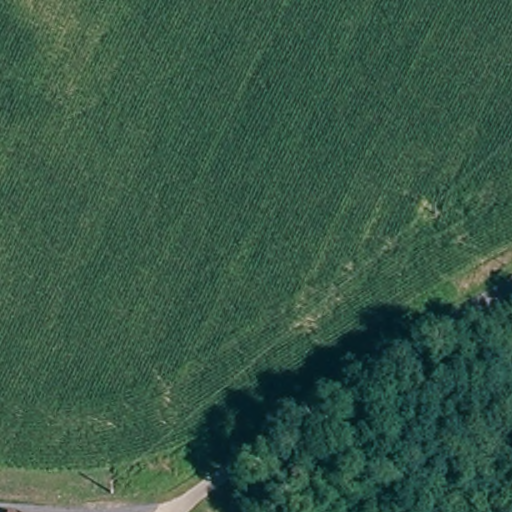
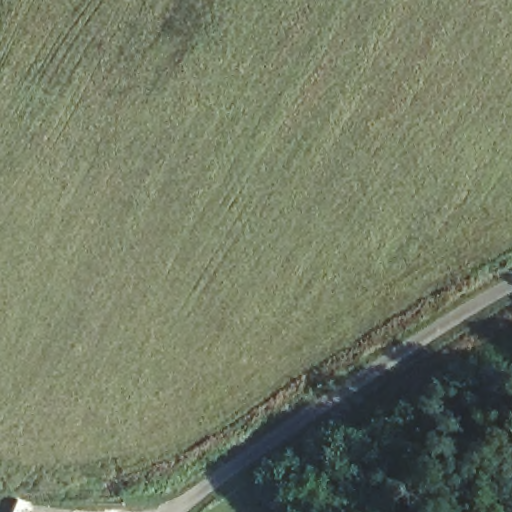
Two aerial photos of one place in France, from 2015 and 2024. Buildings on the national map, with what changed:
unchanged [(12,512),(5,512),(6,510),(12,512)]

